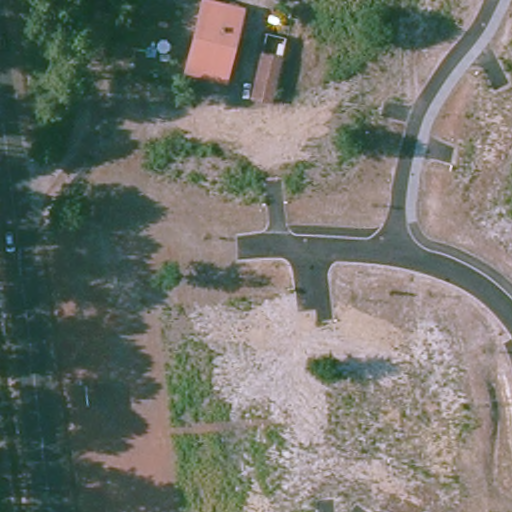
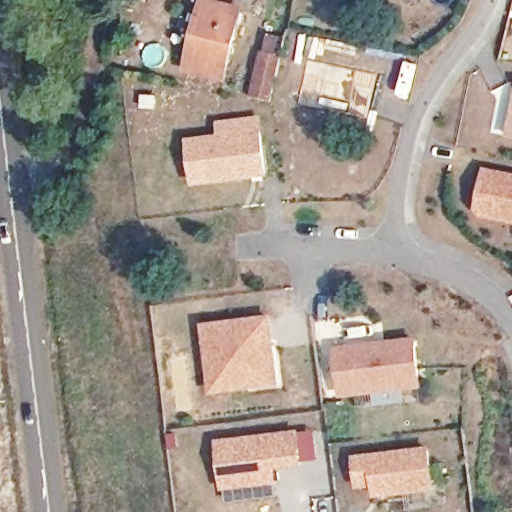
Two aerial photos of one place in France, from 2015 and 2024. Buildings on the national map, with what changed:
unchanged [(222,85),(186,75),(204,6),(238,15),(222,85)]
unchanged [(290,38),(275,106),(251,101),(266,34),(290,38)]
new [(194,188),(188,139),(220,136),(218,121),(263,118),(270,177),(194,188)]
new [(512,136),(509,135),(512,120),(512,136)]
new [(479,209),(486,171),(512,176),(512,220),(482,214),(479,209)]
new [(204,324),(274,316),(280,385),(211,393),(204,324)]
new [(423,386),(345,396),(343,380),(340,351),(355,349),(417,341),(423,386)]
new [(223,490),(218,441),(300,431),(303,466),(275,468),(278,484),(223,490)]
new [(431,450),(436,489),(389,495),(389,493),(379,494),(378,485),(362,487),(359,459),(431,450)]

